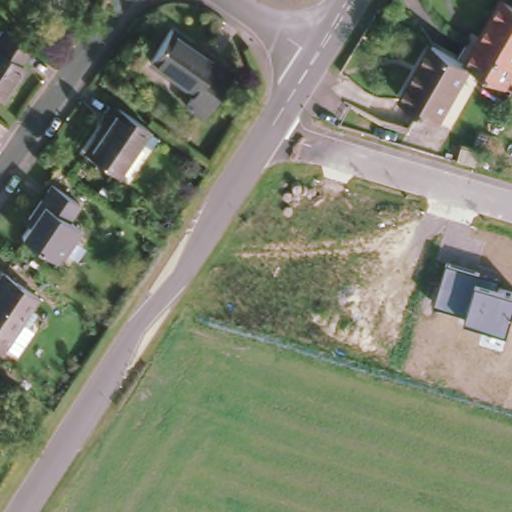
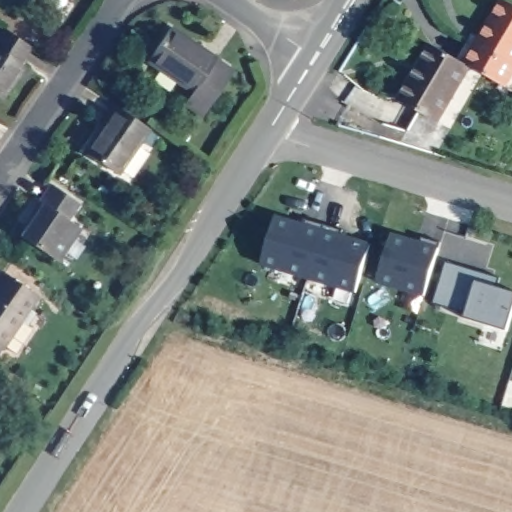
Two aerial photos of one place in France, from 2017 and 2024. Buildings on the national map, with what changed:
unchanged [(504,0),(512,5),(512,66),(503,81),(466,60),(464,59),(498,0),(504,0)]
unchanged [(25,58),(28,60),(5,93),(0,90),(0,32),(7,21),(36,42),(25,58)]
unchanged [(232,66),(202,111),(185,98),(193,86),(147,54),(170,23),(232,66)]
unchanged [(435,114),(418,105),(398,93),(430,39),(464,59),(466,60),(435,114)]
unchanged [(121,168),(90,146),(120,101),(152,123),(121,168)]
new [(435,114),(450,122),(435,149),(401,137),(418,105),(435,114)]
unchanged [(33,219),(28,216),(32,211),(55,178),(84,198),(73,215),(83,222),(61,255),(25,231),(33,219)]
new [(306,225),(308,219),(345,230),(343,236),(372,244),(358,292),(263,264),(277,216),(306,225)]
new [(422,243),(425,237),(442,242),(427,296),(378,282),(393,234),(422,243)]
unchanged [(435,304),(446,262),(500,278),(495,286),(512,291),(512,315),(508,330),(466,317),(435,304)]
unchanged [(31,290),(23,302),(30,307),(21,320),(27,324),(10,349),(0,341),(0,269),(31,290)]

